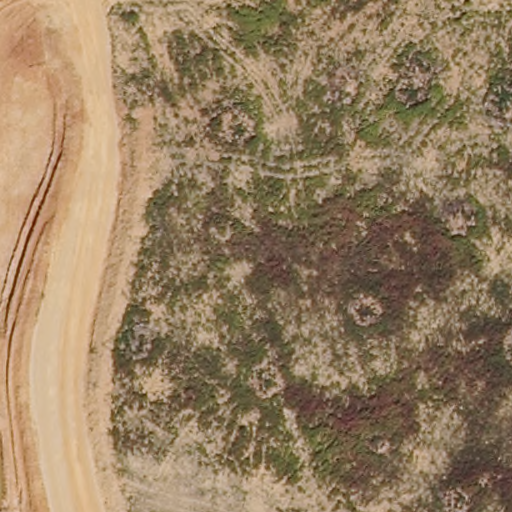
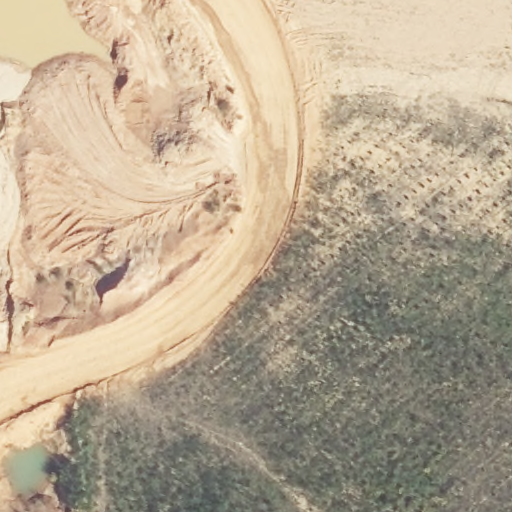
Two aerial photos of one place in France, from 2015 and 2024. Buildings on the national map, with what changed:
[]

